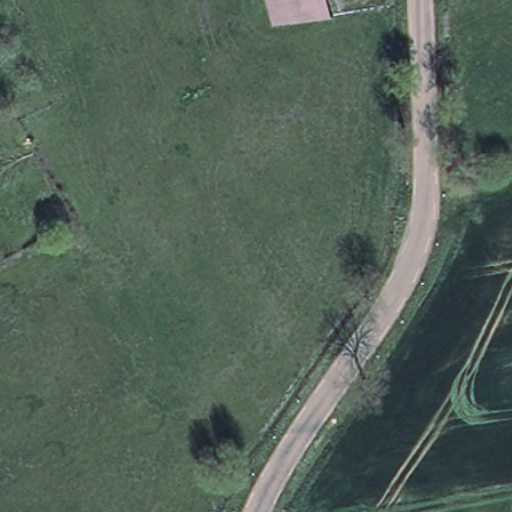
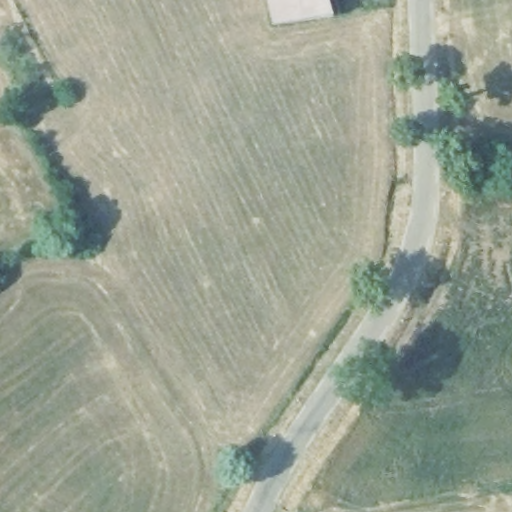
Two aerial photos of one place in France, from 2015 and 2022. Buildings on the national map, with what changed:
unchanged [(330,13),(269,21),(263,0),(326,0),(330,13)]

